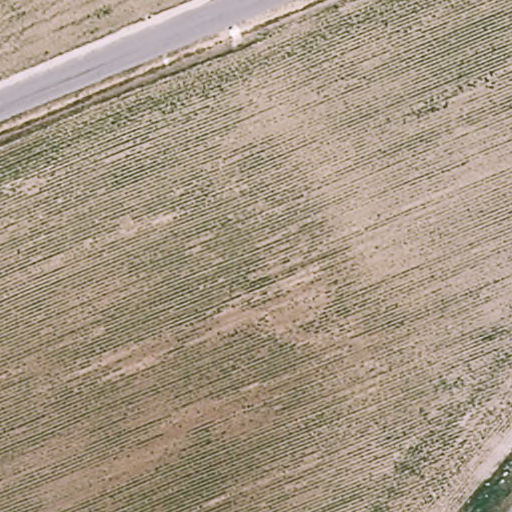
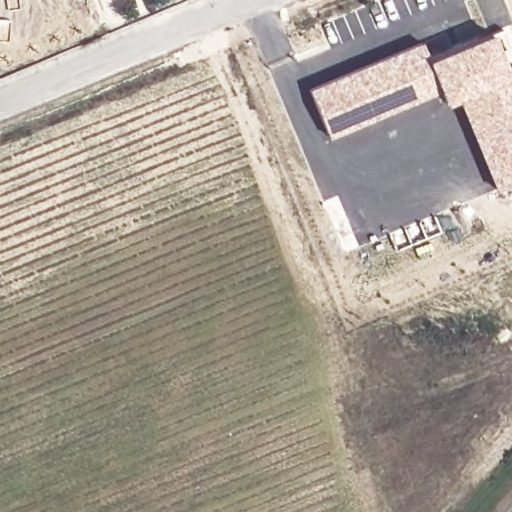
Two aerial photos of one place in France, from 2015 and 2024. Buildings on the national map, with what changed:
new [(496,190),(458,97),(445,102),(439,89),(328,136),(309,89),(422,40),(430,57),(492,30),(510,73),(512,72),(512,183),(496,190)]

